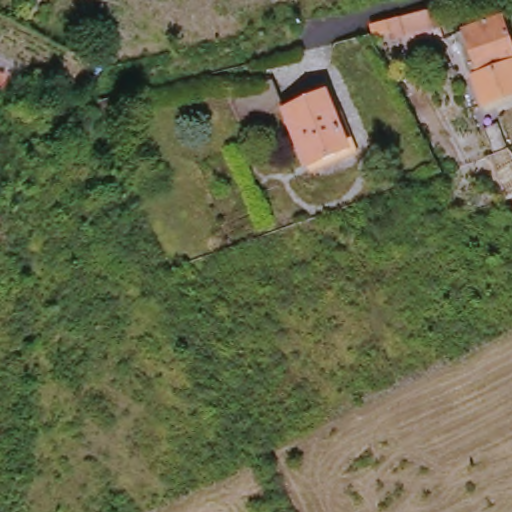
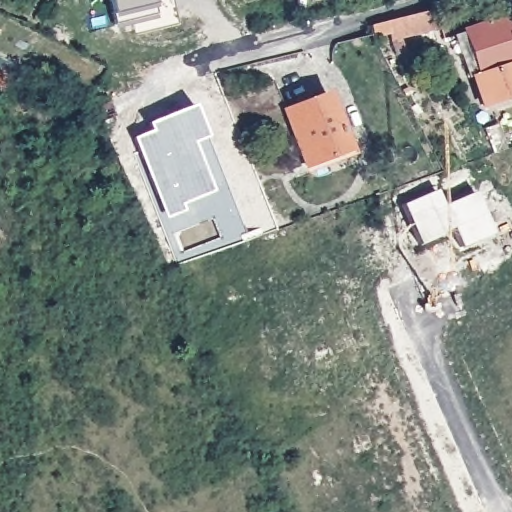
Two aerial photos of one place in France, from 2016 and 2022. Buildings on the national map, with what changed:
new [(158,16),(117,25),(115,15),(112,0),(155,0),(155,4),(158,16)]
unchanged [(392,39),(387,21),(435,10),(440,27),(392,39)]
unchanged [(512,44),(512,96),(483,106),(460,34),(503,19),(512,44)]
unchanged [(350,150),(308,166),(286,111),(328,94),(350,150)]
unchanged [(115,112),(100,119),(93,102),(100,100),(108,98),(115,112)]
new [(136,138),(155,129),(153,120),(200,102),(212,136),(198,140),(220,189),(185,204),(187,210),(170,218),(136,138)]
unchanged [(507,149),(495,153),(486,129),(498,125),(507,149)]
new [(465,246),(457,226),(424,245),(409,202),(441,187),(449,200),(480,189),(498,233),(465,246)]

